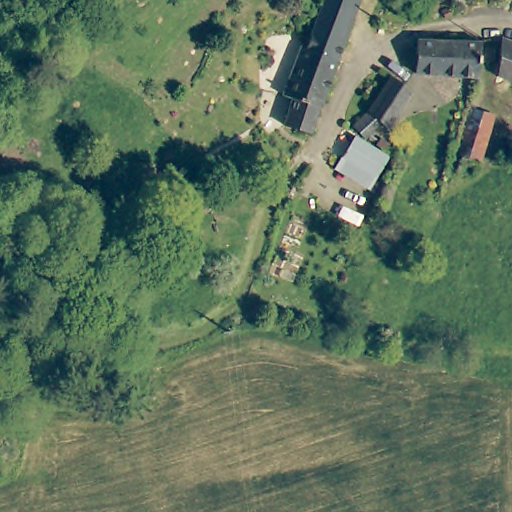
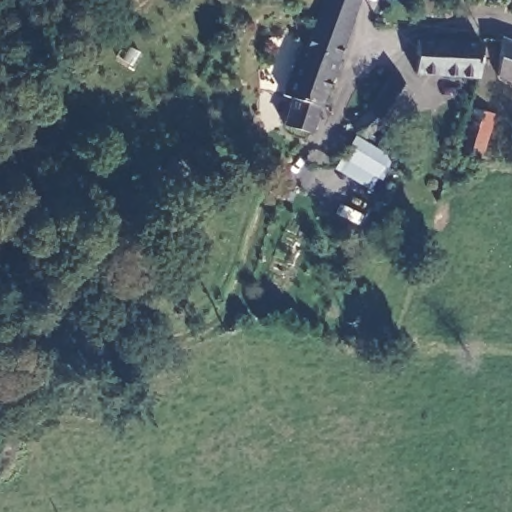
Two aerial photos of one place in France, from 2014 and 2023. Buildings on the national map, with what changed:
unchanged [(308,35),(322,0),(357,0),(340,47),(308,35)]
unchanged [(294,87),(285,85),(304,33),(308,35),(340,47),(323,96),(318,95),(309,120),(287,113),(294,87)]
unchanged [(419,37),(425,35),(477,34),(471,66),(420,68),(419,37)]
unchanged [(512,39),(512,78),(496,72),(499,34),(512,39)]
unchanged [(363,107),(387,74),(410,92),(385,125),(379,121),(365,136),(352,126),(366,109),(363,107)]
unchanged [(478,170),(456,162),(474,114),(495,123),(478,170)]
unchanged [(386,152),(371,191),(333,177),(350,137),(386,152)]

